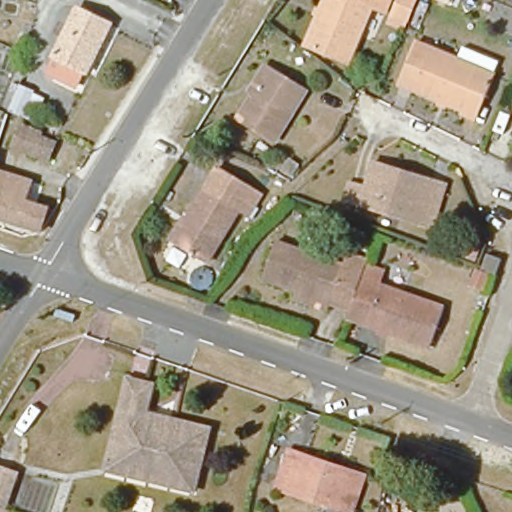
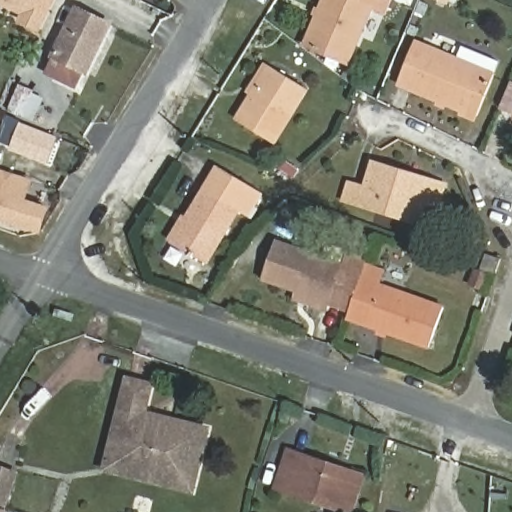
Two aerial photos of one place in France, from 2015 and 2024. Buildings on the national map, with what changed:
new [(21,20),(25,14),(0,2),(0,0),(52,0),(39,29),(21,20)]
unchanged [(371,8),(370,11),(348,63),(306,44),(325,0),(359,0),(359,2),(371,8)]
unchanged [(417,0),(406,28),(370,11),(371,8),(359,2),(359,0),(417,0)]
unchanged [(77,75),(71,89),(44,76),(51,63),(48,61),(72,14),(105,29),(81,78),(77,75)]
unchanged [(458,60),(462,49),(499,64),(495,75),(478,115),(398,83),(415,43),(458,60)]
unchanged [(270,66),(307,89),(273,143),(237,120),(270,66)]
unchanged [(28,121),(14,115),(25,90),(39,96),(28,121)]
unchanged [(47,138),(46,141),(61,148),(53,168),(16,153),(25,129),(47,138)]
unchanged [(373,163),(444,184),(432,227),(403,218),(406,209),(387,203),(384,212),(360,205),(366,187),(373,163)]
unchanged [(221,168),(261,193),(246,216),(238,211),(206,263),(170,241),(185,216),(188,218),(205,189),(208,190),(221,168)]
unchanged [(31,182),(25,201),(35,204),(47,208),(40,232),(39,232),(0,219),(0,172),(31,182)]
unchanged [(484,242),(475,263),(462,257),(470,236),(484,242)]
unchanged [(367,260),(361,278),(350,309),(329,302),(296,289),(262,278),(275,241),(343,264),(347,253),(367,260)]
unchanged [(501,259),(495,275),(481,270),(486,254),(501,259)]
unchanged [(350,309),(361,278),(444,308),(430,348),(347,318),(350,309)]
unchanged [(128,384),(152,391),(145,418),(208,434),(193,494),(105,473),(128,384)]
unchanged [(335,469),(333,474),(358,483),(348,512),(345,512),(287,492),(299,457),(335,469)]
unchanged [(17,474),(5,507),(0,505),(0,468),(17,474)]

